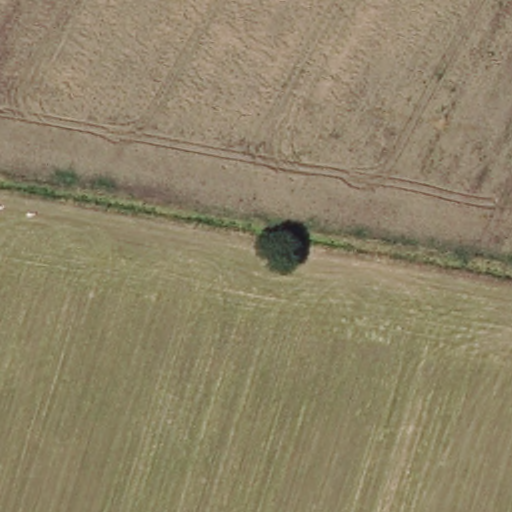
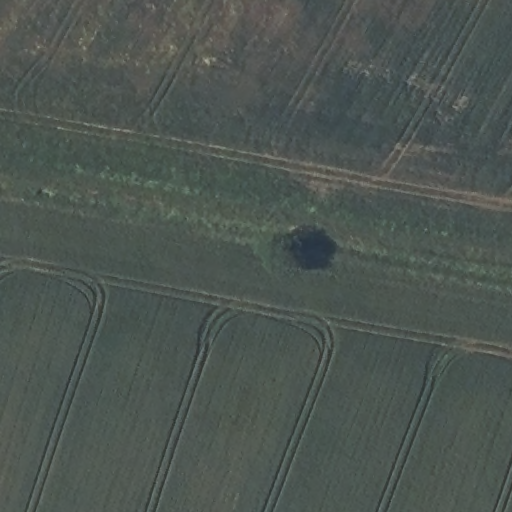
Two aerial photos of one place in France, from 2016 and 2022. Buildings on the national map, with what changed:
[]

